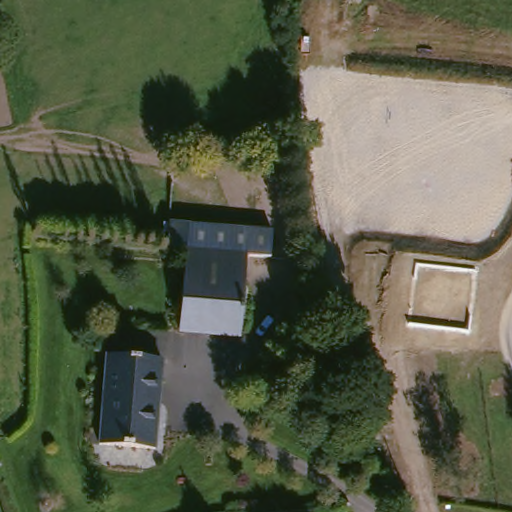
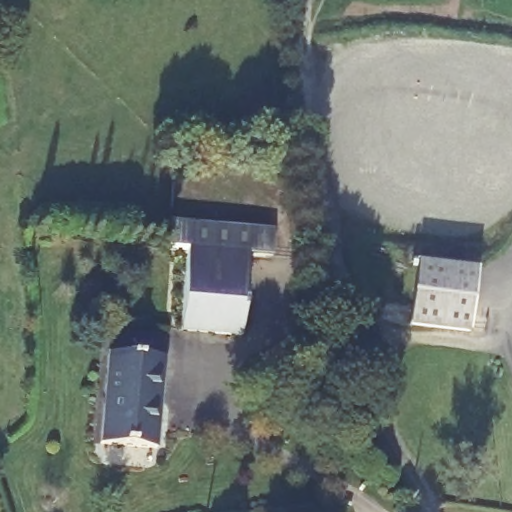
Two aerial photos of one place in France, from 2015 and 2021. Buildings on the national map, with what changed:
unchanged [(184,223),(268,232),(264,260),(243,257),(233,339),(171,332),(184,223)]
new [(477,270),(470,332),(410,326),(418,262),(477,270)]
unchanged [(103,353),(160,361),(149,450),(92,443),(103,353)]

